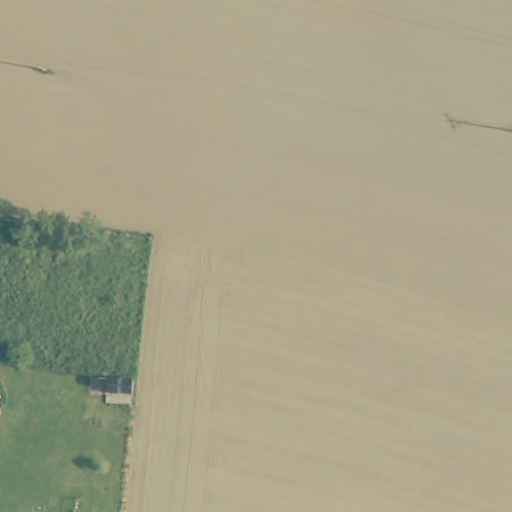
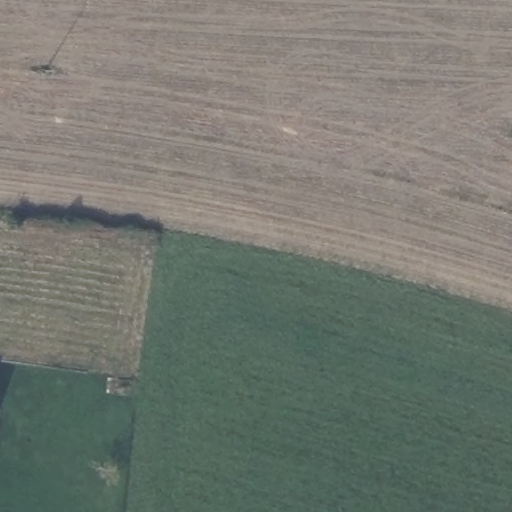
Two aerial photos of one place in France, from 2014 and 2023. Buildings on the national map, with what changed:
[]

